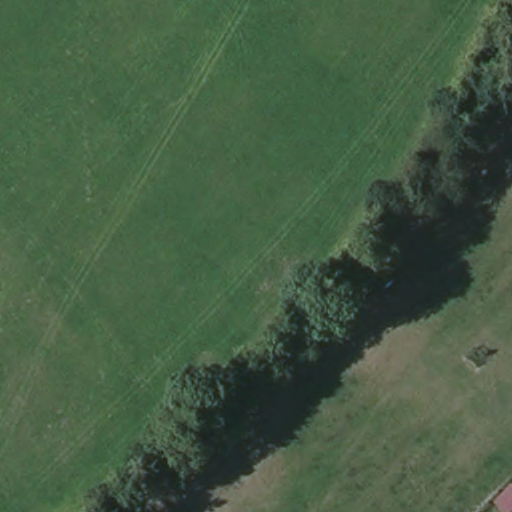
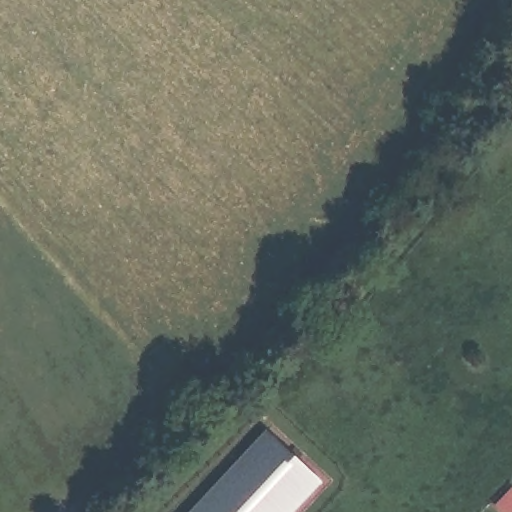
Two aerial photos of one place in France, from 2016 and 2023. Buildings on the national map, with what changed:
new [(269,426),(323,481),(295,512),(188,512),(269,426)]
new [(494,503),(512,483),(512,512),(503,512),(494,503)]

